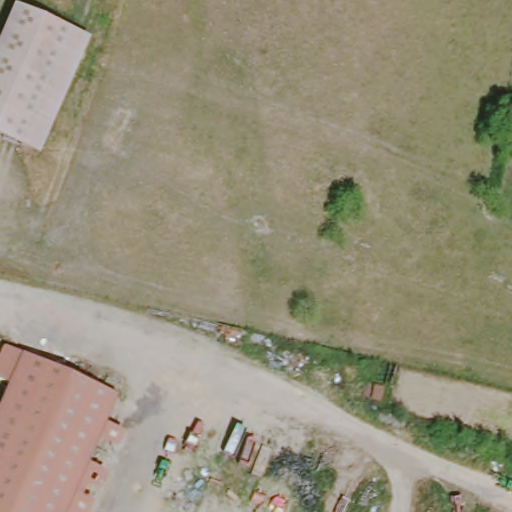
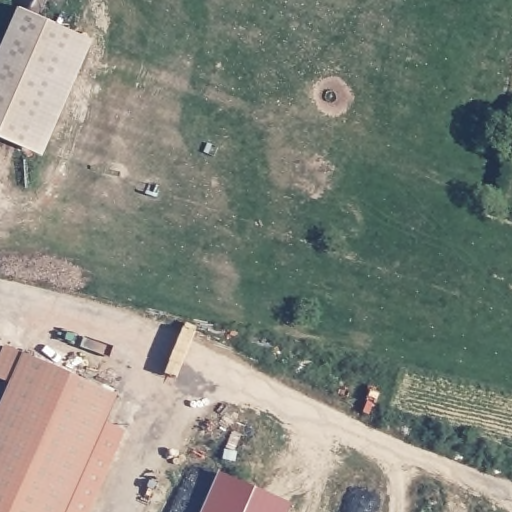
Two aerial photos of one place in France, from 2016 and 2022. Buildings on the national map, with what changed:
unchanged [(0,135),(0,42),(16,5),(70,29),(21,143),(0,135)]
unchanged [(89,37),(39,151),(21,143),(70,29),(89,37)]
unchanged [(0,408),(10,385),(0,380),(0,363),(7,348),(25,356),(120,399),(109,426),(128,435),(94,512),(0,512),(0,408)]
new [(288,512),(203,512),(220,473),(291,505),(288,512)]

